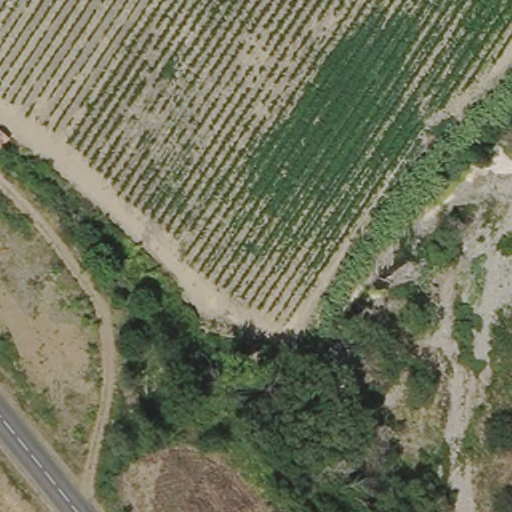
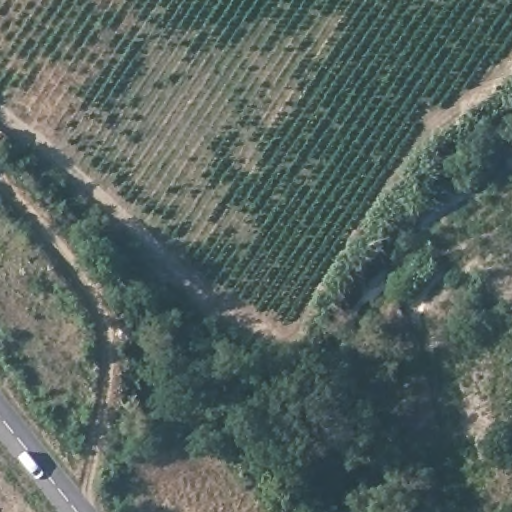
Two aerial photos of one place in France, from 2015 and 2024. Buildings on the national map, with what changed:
unchanged [(0,122),(2,120),(13,133),(0,145),(0,122)]

